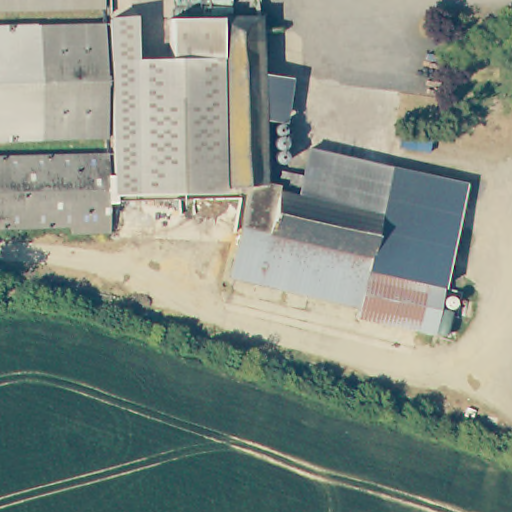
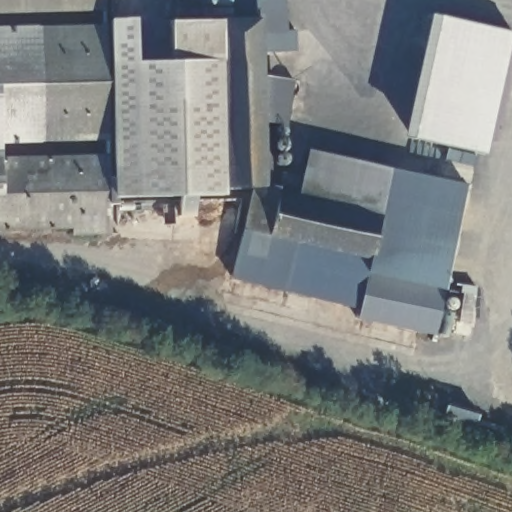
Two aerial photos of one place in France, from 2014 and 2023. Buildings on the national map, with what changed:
unchanged [(108,11),(0,13),(0,0),(108,0),(108,11)]
unchanged [(269,185),(280,187),(385,211),(375,252),(243,222),(252,185),(226,185),(224,58),(173,59),(172,25),(229,24),(228,4),(261,4),(269,185)]
new [(427,12),(437,15),(511,32),(485,153),(413,138),(401,136),(427,12)]
unchanged [(226,190),(117,192),(114,16),(137,15),(138,60),(173,59),(224,58),(226,185),(226,190)]
unchanged [(111,136),(0,137),(0,22),(108,20),(111,136)]
unchanged [(264,76),(292,80),(283,125),(266,122),(264,76)]
unchanged [(243,222),(375,252),(385,211),(280,187),(285,169),(306,174),(313,147),(475,184),(458,259),(432,253),(425,279),(447,284),(436,329),(360,312),(363,301),(231,271),(236,251),(243,222)]
unchanged [(73,223),(0,224),(0,152),(111,150),(112,222),(112,229),(73,230),(73,223)]

